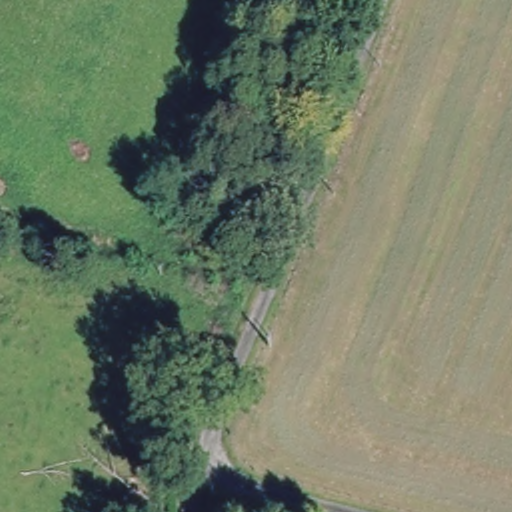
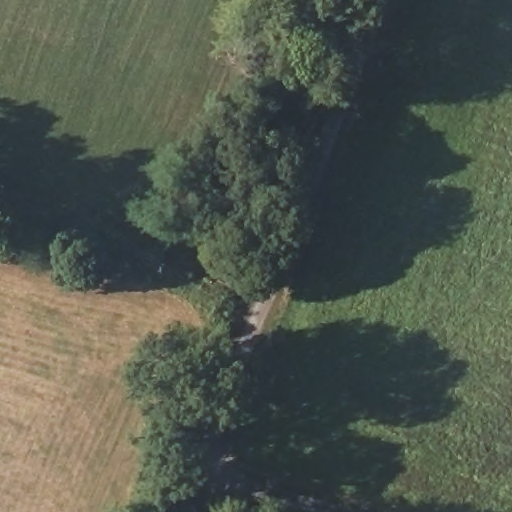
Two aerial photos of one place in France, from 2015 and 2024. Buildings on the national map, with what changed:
[]

